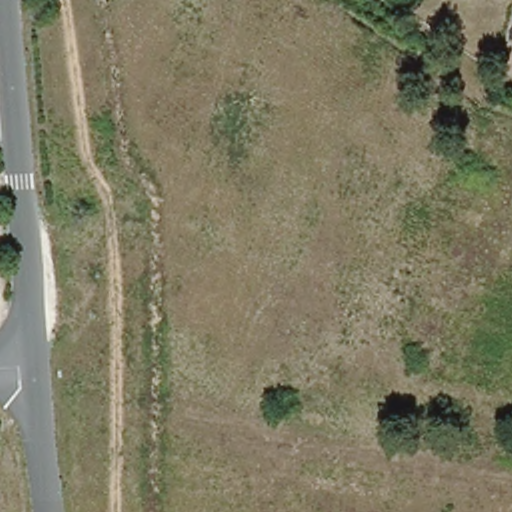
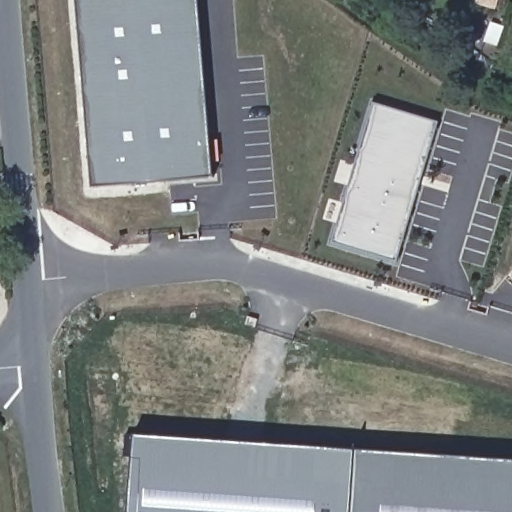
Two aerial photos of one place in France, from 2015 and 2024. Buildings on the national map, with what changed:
new [(211,175),(87,187),(72,0),(195,0),(211,175)]
new [(374,103),(438,122),(396,263),(331,244),(374,103)]
new [(356,447),(352,512),(130,512),(136,433),(356,447)]
new [(352,512),(356,447),(512,458),(512,512),(352,512)]

